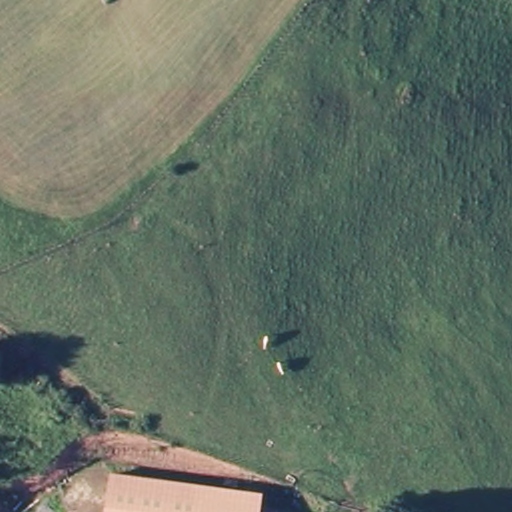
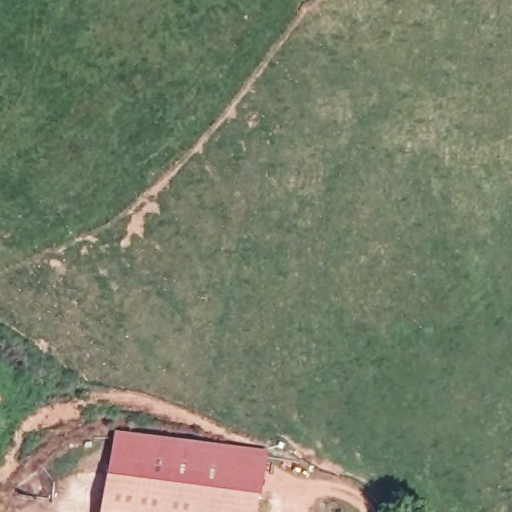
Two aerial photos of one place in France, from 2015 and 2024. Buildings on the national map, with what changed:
new [(114,432),(270,451),(264,497),(259,496),(109,477),(114,432)]
unchanged [(259,496),(257,512),(105,512),(109,477),(259,496)]

